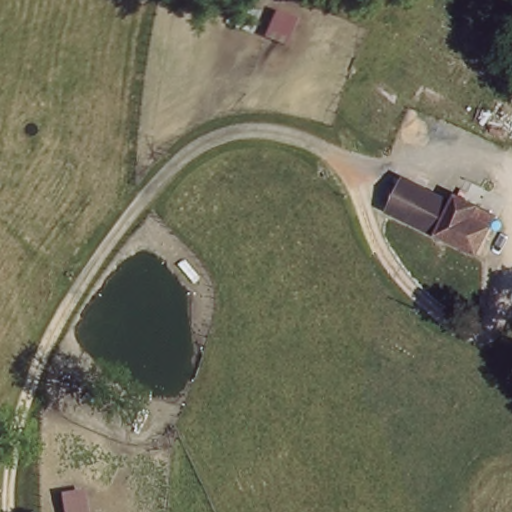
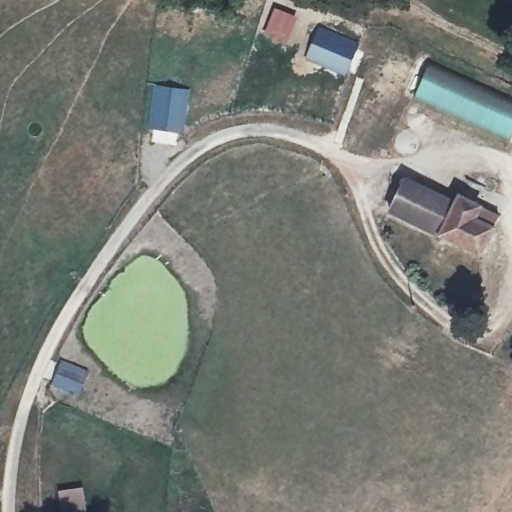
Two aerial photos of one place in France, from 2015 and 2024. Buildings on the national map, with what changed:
new [(297,19),(287,44),(264,35),(274,10),(297,19)]
new [(363,43),(349,78),(306,60),(321,26),(363,43)]
new [(512,103),(512,138),(510,142),(414,97),(432,65),(512,103)]
new [(189,90),(183,133),(147,129),(154,85),(189,90)]
unchanged [(491,234),(476,260),(386,208),(404,179),(453,208),(459,197),(485,211),(499,219),(491,234)]
new [(84,512),(61,512),(58,493),(80,489),(84,512)]

